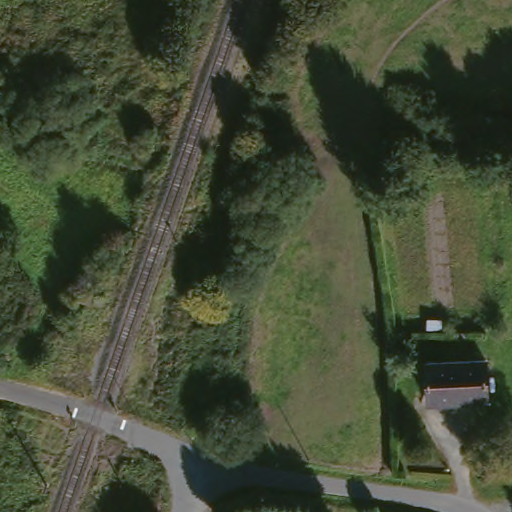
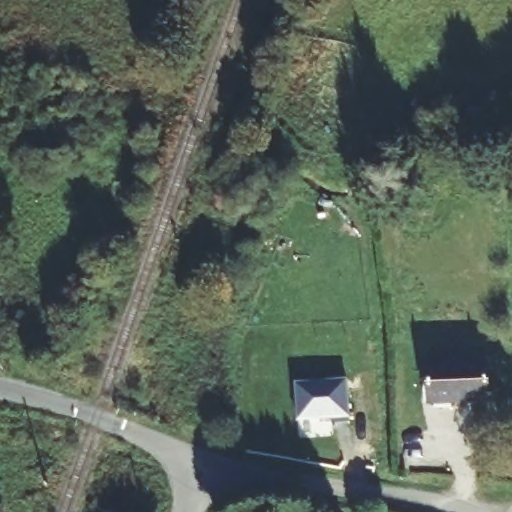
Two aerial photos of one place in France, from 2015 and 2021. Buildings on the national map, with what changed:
unchanged [(430,403),(428,361),(488,359),(489,402),(430,403)]
new [(347,377),(349,420),(331,420),(331,415),(297,417),(296,380),(347,377)]

